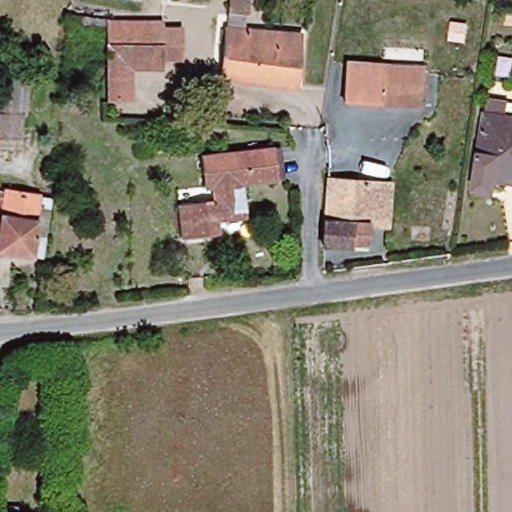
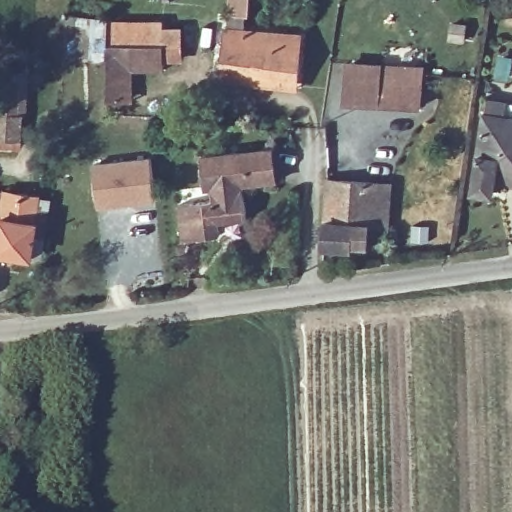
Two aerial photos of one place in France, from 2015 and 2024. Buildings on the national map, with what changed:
unchanged [(105,21),(175,26),(175,32),(202,34),(201,58),(134,55),(134,83),(105,81),(105,21)]
unchanged [(302,30),(300,75),(225,70),(227,23),(302,30)]
unchanged [(336,100),(337,62),(372,63),(372,70),(418,72),(418,101),(371,100),(336,100)]
unchanged [(0,79),(28,80),(26,114),(22,117),(19,152),(0,152),(0,79)]
unchanged [(475,187),(476,169),(485,111),(512,115),(512,174),(497,172),(495,189),(475,187)]
unchanged [(272,150),(276,182),(243,185),(243,217),(215,222),(216,233),(182,238),(180,203),(213,198),(212,190),(204,191),(200,158),(272,150)]
new [(97,206),(94,166),(151,161),(155,202),(97,206)]
unchanged [(325,178),(386,183),(384,225),(365,224),(363,247),(320,246),(325,178)]
unchanged [(30,196),(29,227),(35,227),(31,256),(0,254),(0,200),(0,194),(30,196)]

